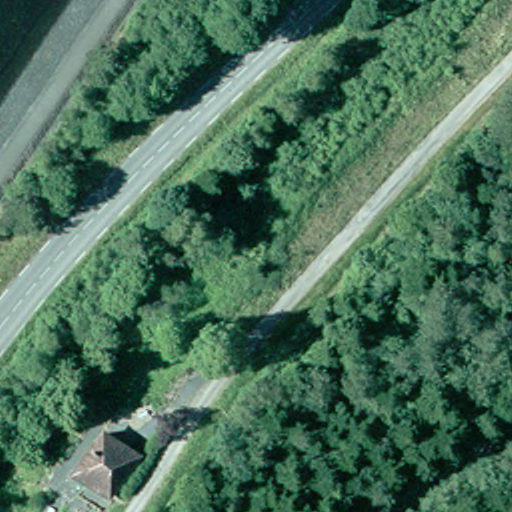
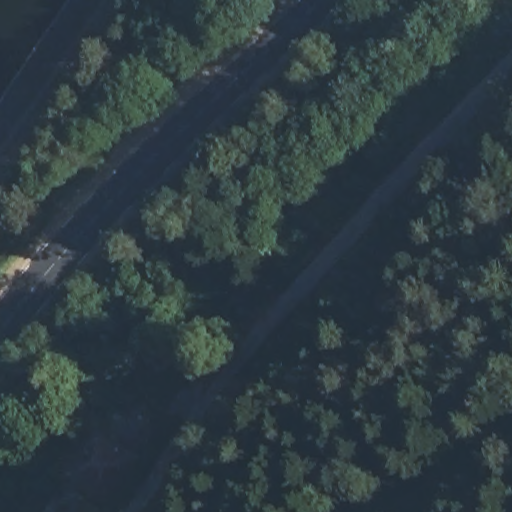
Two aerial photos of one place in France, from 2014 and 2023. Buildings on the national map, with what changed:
unchanged [(75,476),(102,434),(139,457),(110,499),(75,476)]

